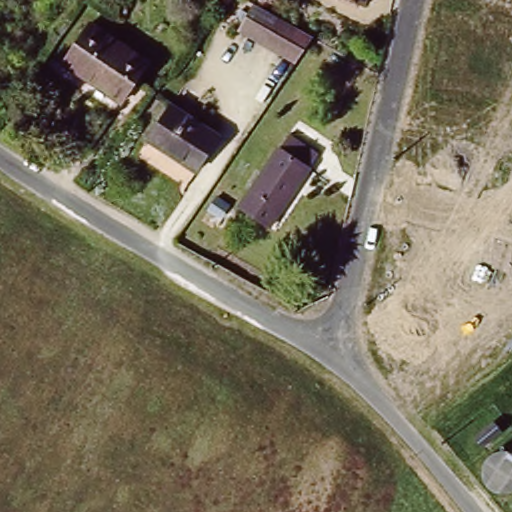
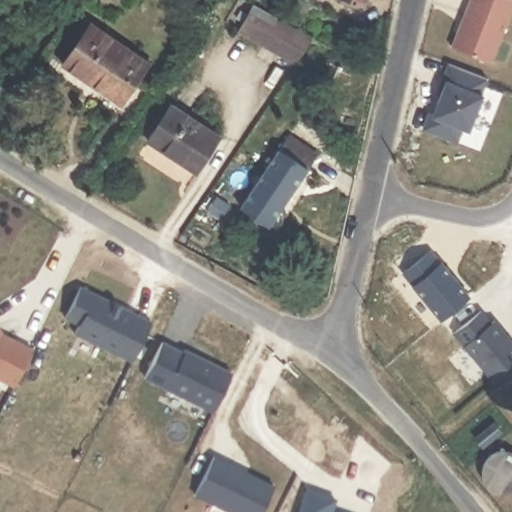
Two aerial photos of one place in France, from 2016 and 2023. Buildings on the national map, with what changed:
unchanged [(370,6),(354,0),(372,0),(370,6)]
new [(451,47),(469,0),(512,0),(512,12),(493,62),(451,47)]
unchanged [(249,9),(309,41),(292,66),(235,35),(249,9)]
unchanged [(92,24),(150,62),(137,82),(123,104),(65,65),(92,24)]
new [(481,94),(484,95),(470,131),(463,129),(458,141),(422,129),(427,112),(434,115),(440,95),(438,94),(449,63),(487,78),(481,94)]
unchanged [(150,141),(173,105),(222,136),(200,172),(181,161),(170,153),(150,141)]
unchanged [(268,220),(238,201),(285,130),(315,149),(285,195),(277,207),(268,220)]
unchanged [(229,206),(236,211),(229,221),(222,216),(229,206)]
new [(133,361),(75,335),(78,324),(65,318),(80,286),(151,322),(133,361)]
new [(452,333),(481,310),(491,321),(495,318),(512,340),(512,368),(494,383),(452,333)]
new [(13,387),(0,380),(0,330),(2,333),(32,348),(13,387)]
new [(212,411),(144,378),(161,340),(183,350),(185,349),(231,371),(212,411)]
unchanged [(512,433),(512,434),(493,450),(485,440),(505,425),(512,433)]
unchanged [(486,463),(490,459),(494,455),(496,455),(499,454),(504,453),(510,454),(511,455),(512,455),(512,495),(507,496),(501,496),(496,495),(491,492),(488,488),(485,483),(483,478),(483,473),(484,468),(486,463)]
new [(229,512),(195,495),(215,455),(273,485),(261,512),(229,512)]
new [(338,512),(297,512),(305,487),(336,497),(333,510),(338,512)]

